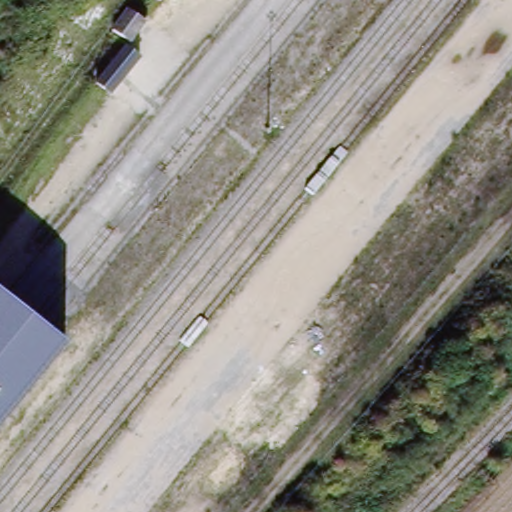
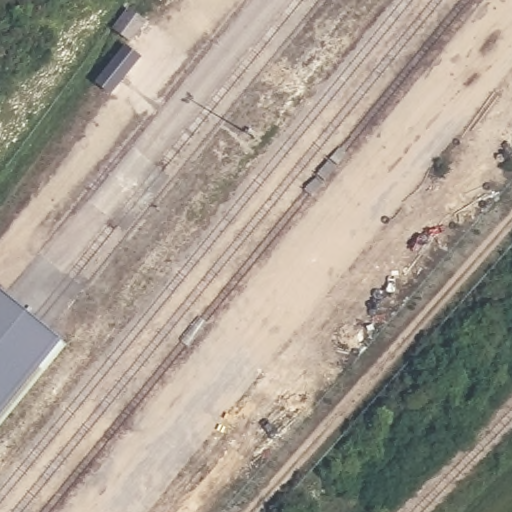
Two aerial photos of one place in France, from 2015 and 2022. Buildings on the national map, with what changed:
unchanged [(130,36),(115,25),(129,6),(143,17),(130,36)]
unchanged [(110,89),(97,77),(128,44),(140,54),(110,89)]
unchanged [(60,347),(20,395),(0,420),(0,297),(60,347)]

